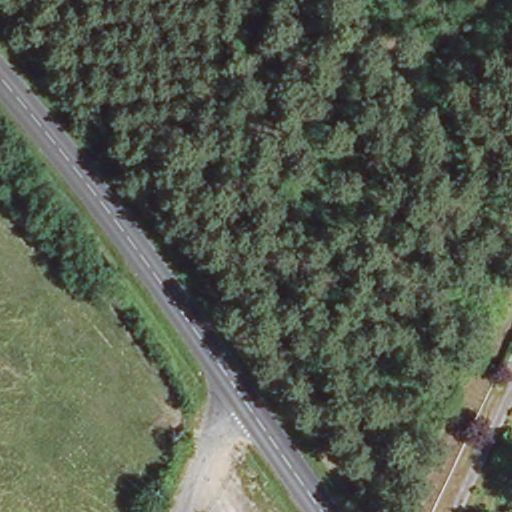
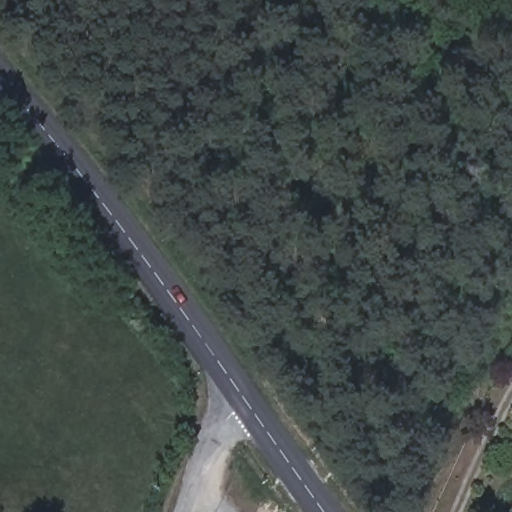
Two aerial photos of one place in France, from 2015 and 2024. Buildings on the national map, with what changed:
[]

